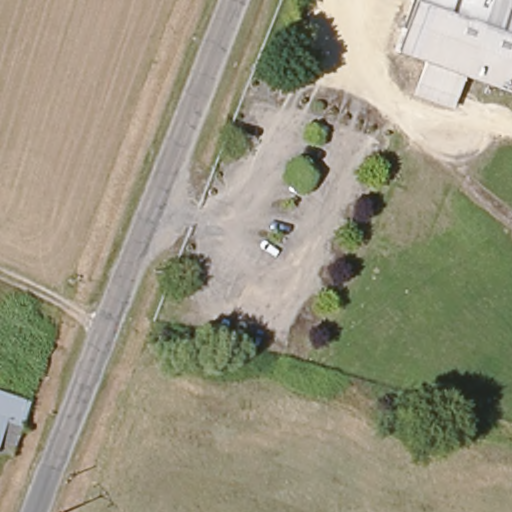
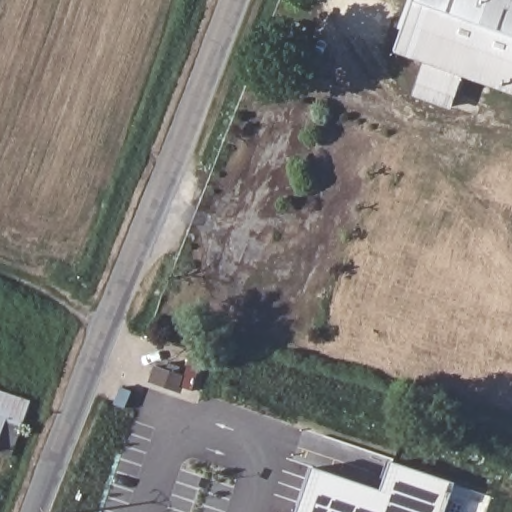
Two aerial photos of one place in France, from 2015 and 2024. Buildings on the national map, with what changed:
unchanged [(464,79),(453,111),(418,99),(430,64),(400,54),(420,0),(512,0),(512,96),(464,79)]
unchanged [(0,455),(0,391),(31,403),(10,459),(0,455)]
new [(313,467),(381,490),(391,461),(455,483),(446,512),(298,512),(313,467)]

